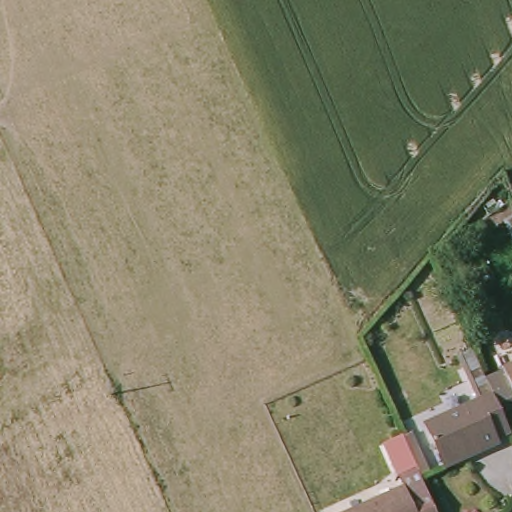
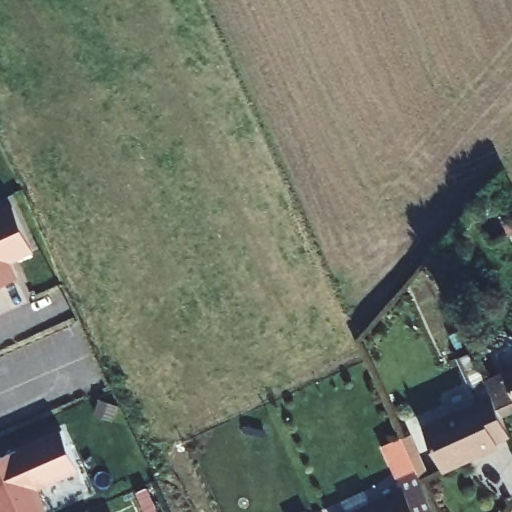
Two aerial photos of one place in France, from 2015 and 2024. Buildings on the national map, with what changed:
new [(34,250),(9,260),(17,279),(0,286),(0,212),(14,205),(34,250)]
unchanged [(444,467),(425,426),(478,403),(458,357),(472,350),(485,381),(500,415),(509,433),(494,440),(495,445),(444,467)]
unchanged [(500,415),(485,381),(504,373),(502,370),(512,366),(512,410),(500,415)]
new [(0,458),(62,430),(80,469),(36,488),(46,511),(44,512),(0,512),(0,511),(0,458)]
unchanged [(399,485),(400,484),(392,465),(407,458),(415,477),(417,477),(432,512),(367,512),(404,496),(399,485)]

